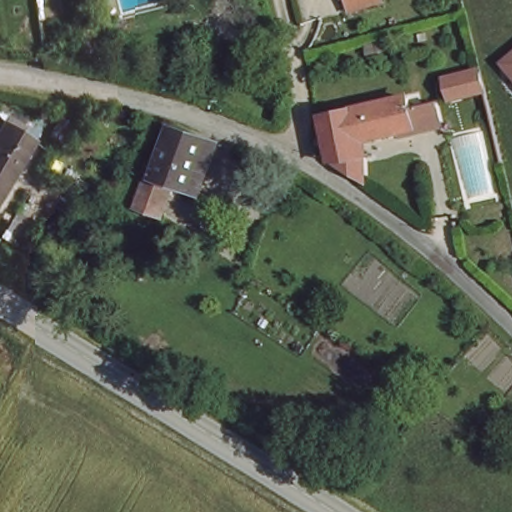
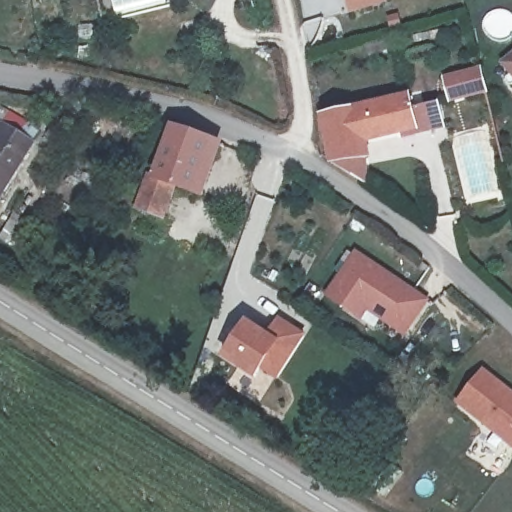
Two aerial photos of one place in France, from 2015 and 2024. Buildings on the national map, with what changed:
unchanged [(354,22),(348,4),(347,0),(384,0),(387,7),(354,22)]
unchanged [(487,41),(492,61),(458,69),(453,50),(487,41)]
unchanged [(512,56),(512,73),(503,63),(512,56)]
unchanged [(325,147),(317,117),(398,94),(404,112),(431,106),(436,126),(411,132),(354,146),(325,147)]
unchanged [(33,142),(0,196),(0,132),(4,126),(33,142)]
unchanged [(233,152),(205,195),(174,181),(154,216),(136,204),(157,169),(162,171),(183,130),(233,152)]
unchanged [(338,179),(325,147),(354,146),(367,192),(338,179)]
new [(361,321),(324,297),(354,251),(430,299),(405,338),(368,313),(361,321)]
new [(246,320),(267,333),(279,317),(306,334),(276,380),(262,370),(255,381),(220,358),(246,320)]
new [(482,368),(512,391),(512,449),(455,403),(482,368)]

